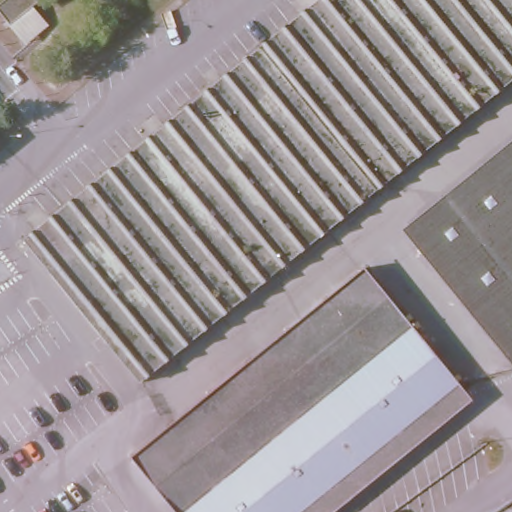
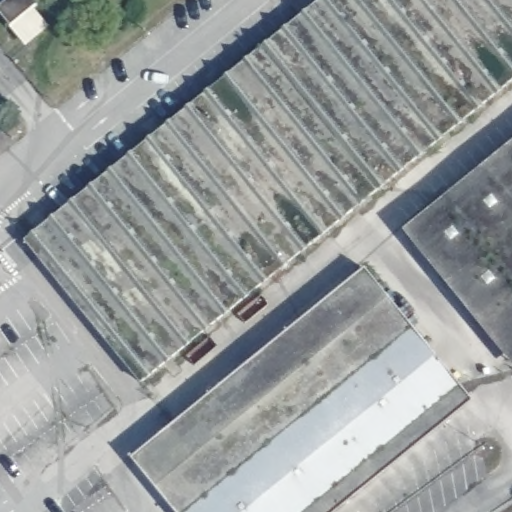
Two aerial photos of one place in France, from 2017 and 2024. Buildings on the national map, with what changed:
unchanged [(15,30),(11,25),(0,12),(15,0),(40,0),(45,6),(15,30)]
unchanged [(140,374),(26,232),(312,0),(512,0),(512,69),(140,374)]
unchanged [(403,227),(512,138),(512,361),(403,227)]
unchanged [(411,320),(179,511),(132,455),(365,263),(411,320)]
unchanged [(411,320),(462,383),(303,512),(180,512),(179,511),(411,320)]
unchanged [(475,398),(333,512),(303,512),(462,383),(475,398)]

